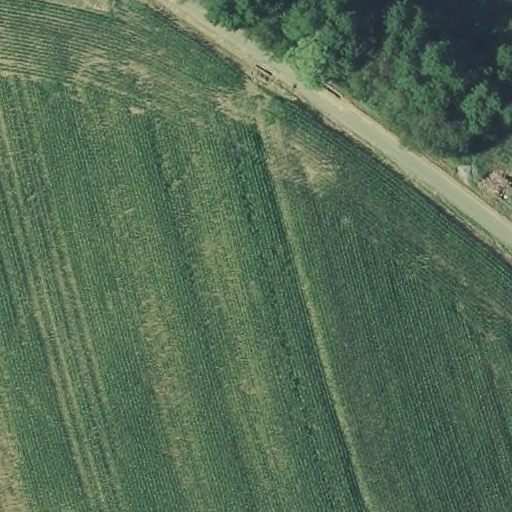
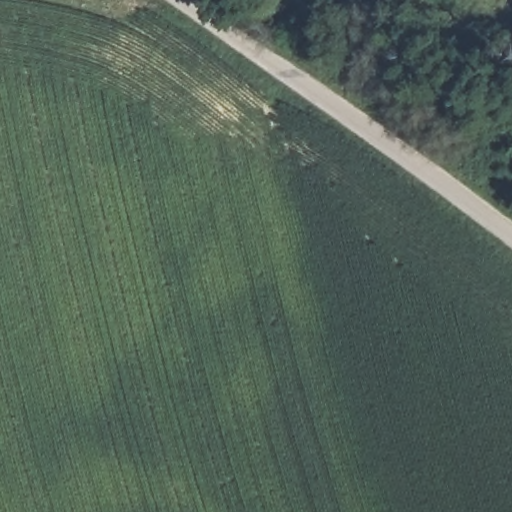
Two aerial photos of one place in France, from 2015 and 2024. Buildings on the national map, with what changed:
[]

